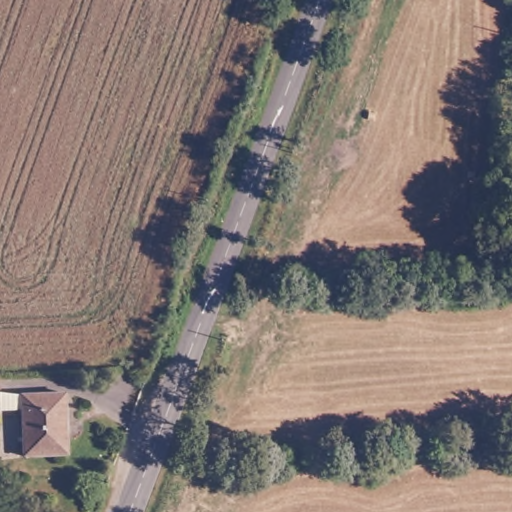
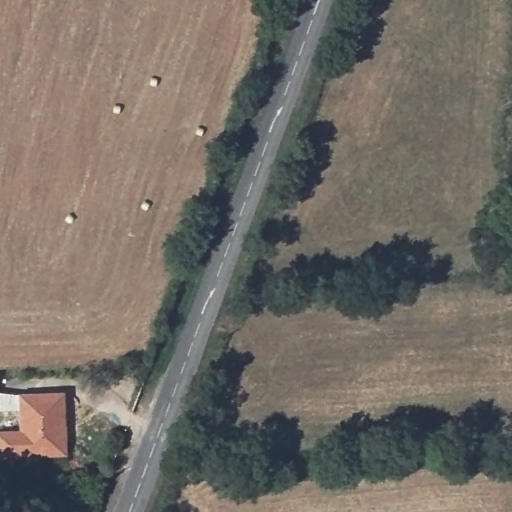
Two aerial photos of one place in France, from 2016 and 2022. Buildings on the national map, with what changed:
unchanged [(5,391),(67,387),(72,446),(28,450),(24,404),(1,406),(0,401),(0,402),(0,373),(2,373),(3,373),(5,391)]

